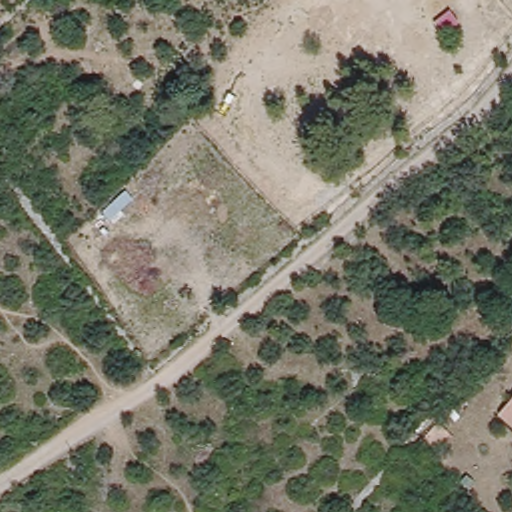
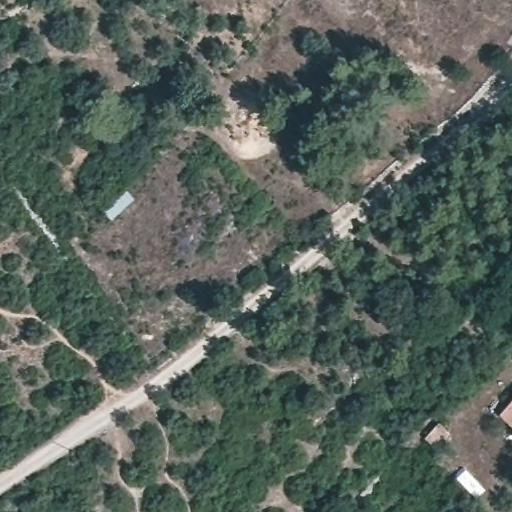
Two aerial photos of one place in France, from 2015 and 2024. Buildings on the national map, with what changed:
unchanged [(145,84),(140,90),(133,85),(138,79),(145,84)]
unchanged [(497,411),(512,393),(512,419),(497,411)]

